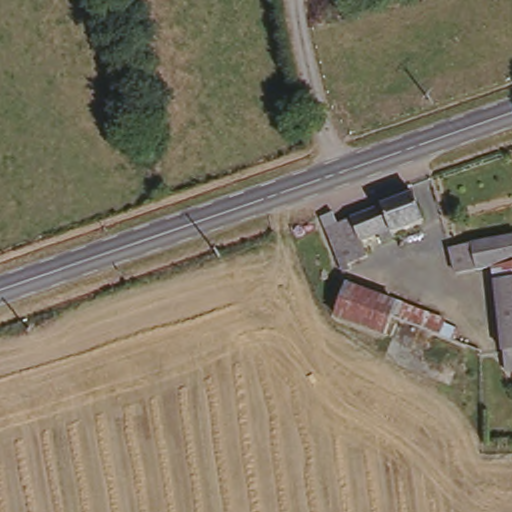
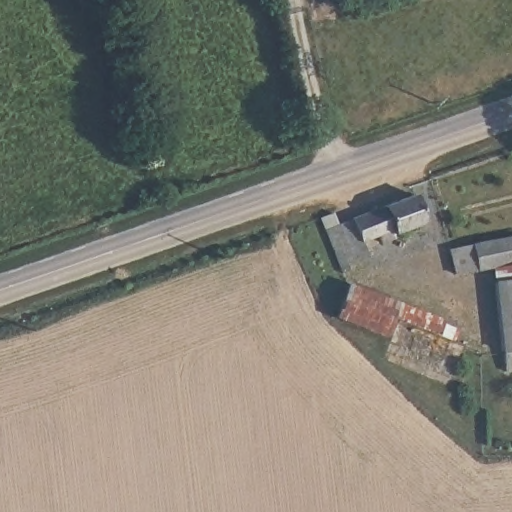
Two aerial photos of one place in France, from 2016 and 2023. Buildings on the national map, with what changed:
unchanged [(322,221),(365,207),(430,183),(438,211),(408,222),(406,218),(383,226),(358,236),(361,246),(355,248),(346,252),(350,262),(336,266),(325,230),(322,221)]
unchanged [(450,269),(447,240),(512,234),(512,264),(450,269)]
unchanged [(501,374),(496,280),(512,278),(512,374),(501,374)]
unchanged [(398,298),(456,319),(450,338),(390,317),(385,335),(331,316),(345,280),(398,298)]

